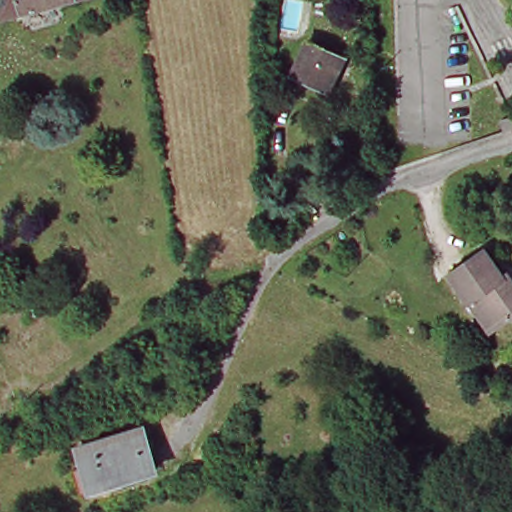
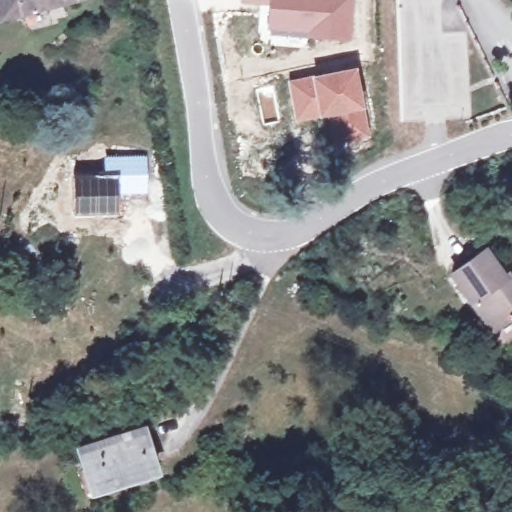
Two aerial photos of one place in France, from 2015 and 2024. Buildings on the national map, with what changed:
unchanged [(0,19),(0,0),(85,0),(0,19)]
new [(240,0),(355,0),(352,41),(265,31),(268,5),(240,3),(240,0)]
demolished [(346,55),(330,90),(295,75),(312,40),(346,55)]
new [(357,65),(365,108),(334,115),(295,121),(287,78),(357,65)]
new [(365,108),(372,139),(338,145),(334,115),(365,108)]
demolished [(502,110),(512,108),(512,126),(508,127),(502,110)]
new [(104,155),(147,154),(148,194),(119,194),(118,173),(103,172),(104,155)]
new [(75,172),(103,172),(118,173),(119,194),(119,214),(74,213),(75,172)]
unchanged [(508,275),(512,281),(512,315),(497,326),(475,297),(470,301),(450,273),(482,251),(502,280),(508,275)]
unchanged [(89,488),(83,468),(77,446),(96,440),(142,425),(155,468),(89,488)]

